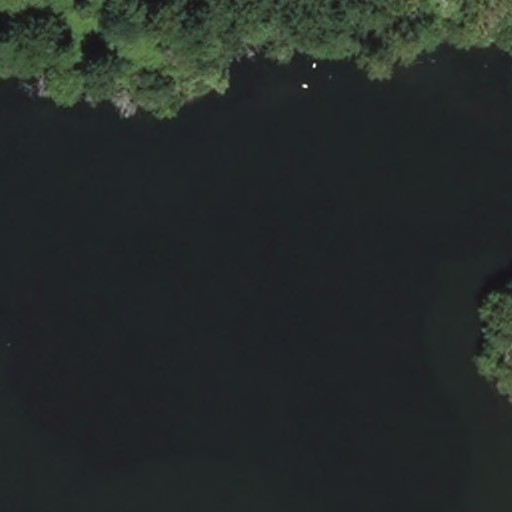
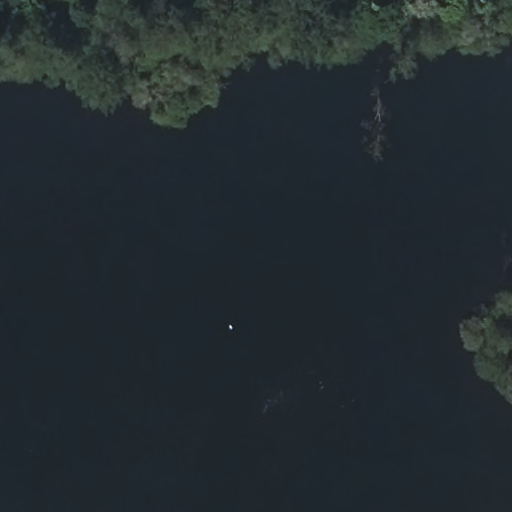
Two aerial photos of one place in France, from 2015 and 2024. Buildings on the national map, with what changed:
[]

